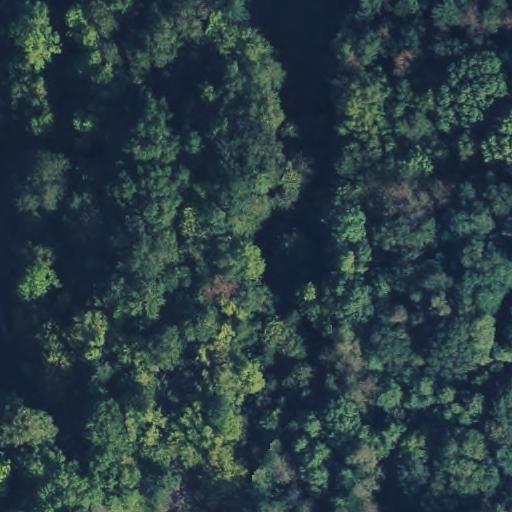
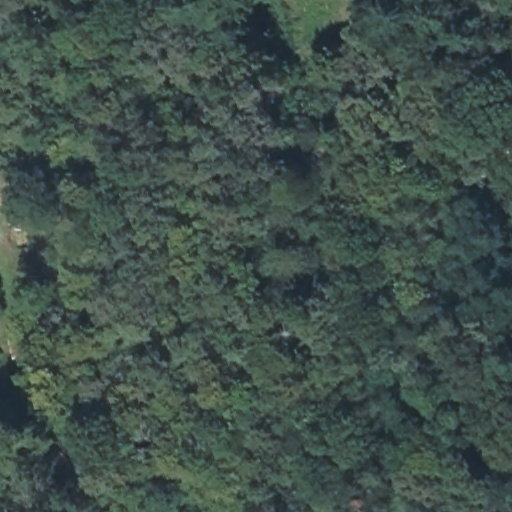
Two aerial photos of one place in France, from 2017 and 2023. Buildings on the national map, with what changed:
[]

